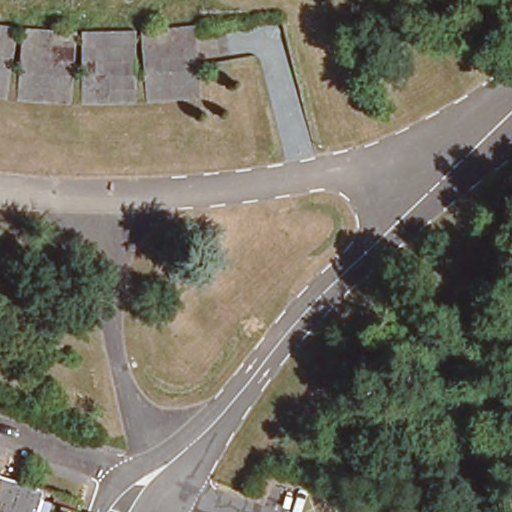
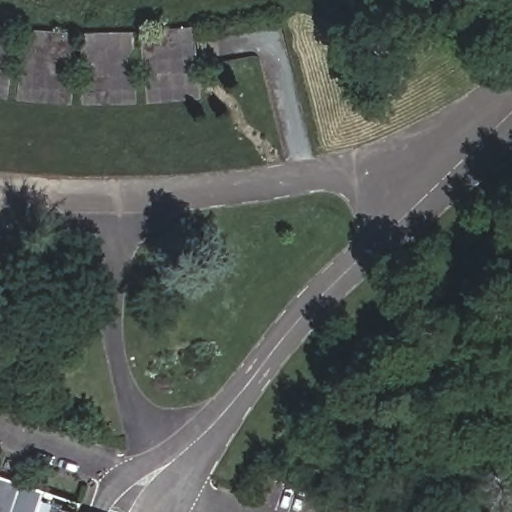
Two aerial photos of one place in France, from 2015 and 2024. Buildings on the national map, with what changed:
unchanged [(16,36),(4,105),(0,105),(0,34),(16,36)]
unchanged [(194,35),(198,106),(148,110),(142,40),(194,35)]
unchanged [(72,40),(70,109),(18,107),(24,37),(72,40)]
unchanged [(136,40),(136,110),(83,110),(82,41),(136,40)]
unchanged [(2,481),(47,496),(41,512),(0,512),(0,488),(2,481)]
unchanged [(74,511),(77,512),(74,512),(74,511)]

